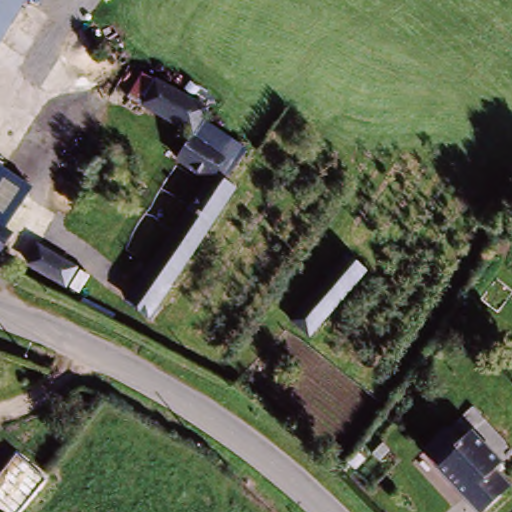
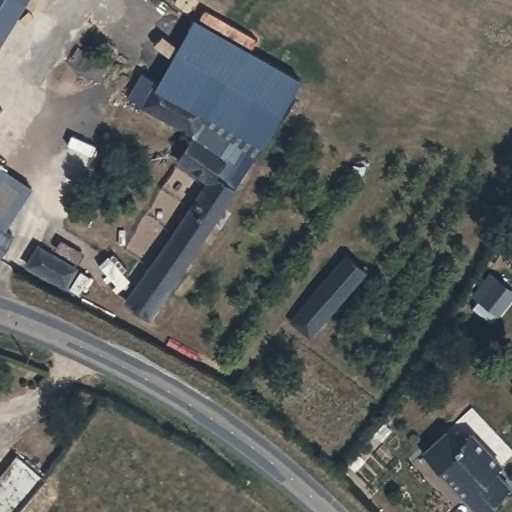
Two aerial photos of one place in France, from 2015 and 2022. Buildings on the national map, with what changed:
unchanged [(22,5),(0,37),(0,0),(14,0),(22,5)]
unchanged [(22,5),(14,0),(26,0),(22,5)]
new [(302,78),(263,147),(237,183),(227,175),(238,161),(221,147),(227,139),(204,121),(212,108),(160,77),(195,17),(302,78)]
unchanged [(245,189),(142,320),(115,298),(160,240),(201,186),(177,167),(194,137),(133,98),(150,71),(212,108),(204,121),(227,139),(221,147),(238,161),(227,175),(245,189)]
unchanged [(30,190),(5,231),(0,227),(0,170),(30,190)]
unchanged [(17,240),(0,263),(0,227),(17,240)]
unchanged [(42,253),(90,278),(82,293),(34,269),(42,253)]
unchanged [(370,277),(312,334),(292,313),(350,255),(370,277)]
unchanged [(446,433),(457,445),(461,442),(463,444),(476,434),(503,467),(497,472),(512,488),(484,512),(481,512),(468,497),(427,450),(446,433)]

